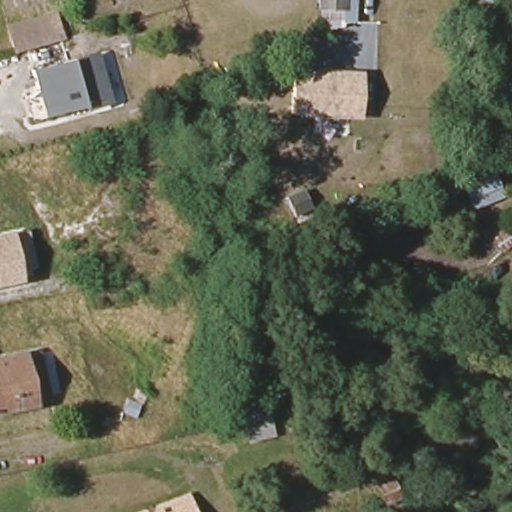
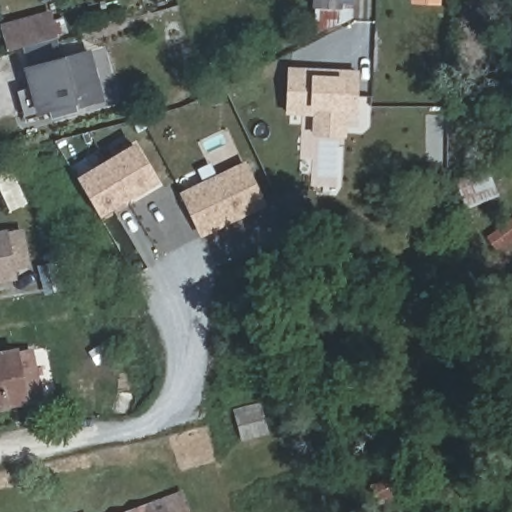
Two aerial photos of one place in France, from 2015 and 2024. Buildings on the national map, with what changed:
unchanged [(350,21),(336,24),(336,27),(313,29),(314,6),(339,8),(339,0),(351,0),(350,21)]
unchanged [(339,8),(314,6),(315,0),(339,0),(339,8)]
unchanged [(62,39),(14,52),(7,27),(55,14),(62,39)]
unchanged [(22,83),(35,79),(32,65),(51,60),(93,49),(106,95),(81,101),(37,113),(30,115),(22,83)]
unchanged [(359,105),(358,114),(339,113),(290,111),(292,68),(360,71),(359,105)]
new [(100,218),(76,177),(135,142),(159,183),(100,218)]
new [(200,239),(178,193),(245,161),(267,207),(200,239)]
unchanged [(512,195),(512,204),(485,216),(474,190),(504,178),(512,195)]
unchanged [(9,255),(0,256),(0,232),(4,232),(9,255)]
unchanged [(505,247),(512,242),(512,256),(505,247)]
unchanged [(0,256),(9,255),(13,278),(0,280),(0,256)]
unchanged [(18,399),(19,401),(0,405),(0,353),(9,351),(10,355),(25,351),(35,395),(18,399)]
unchanged [(264,432),(241,438),(235,411),(257,405),(264,432)]
unchanged [(413,503),(395,510),(390,496),(408,489),(413,503)]
unchanged [(182,493),(191,512),(149,512),(147,506),(182,493)]
unchanged [(149,512),(129,512),(147,506),(149,512)]

